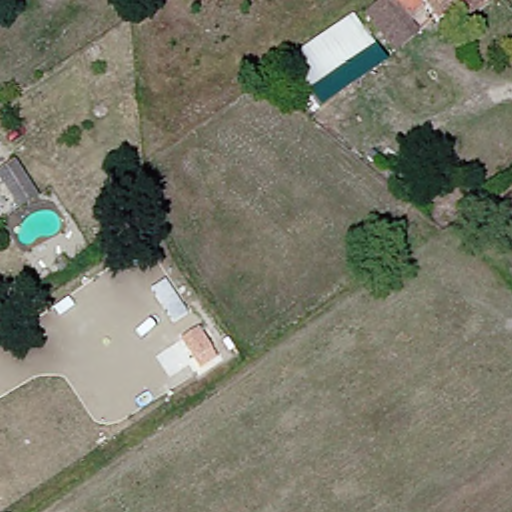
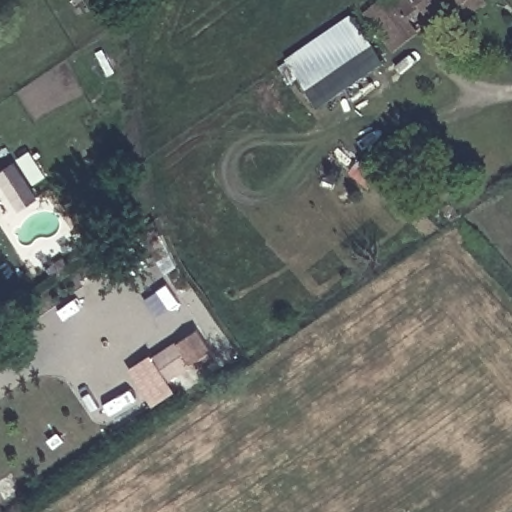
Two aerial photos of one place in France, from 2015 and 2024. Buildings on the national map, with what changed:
unchanged [(468,0),(437,24),(426,10),(387,40),(367,14),(385,0),(468,0)]
unchanged [(307,86),(287,57),(353,11),(372,40),(307,86)]
unchanged [(0,178),(0,171),(14,162),(36,197),(19,208),(0,178)]
new [(217,363),(200,374),(194,367),(170,385),(175,393),(159,403),(137,370),(178,342),(180,345),(197,334),(217,363)]

